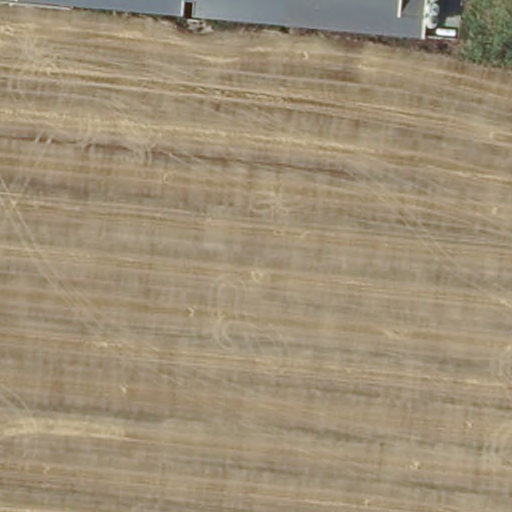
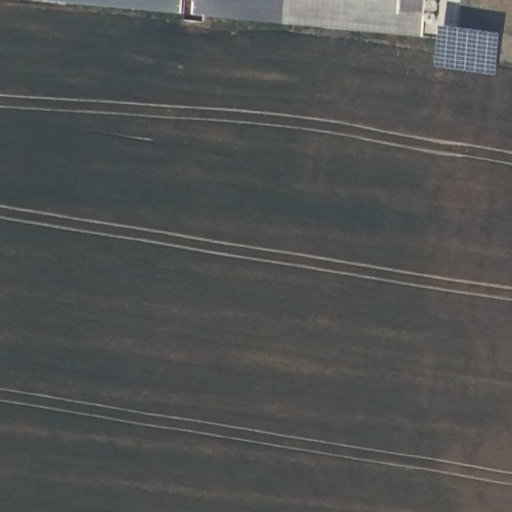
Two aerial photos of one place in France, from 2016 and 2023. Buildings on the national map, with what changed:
unchanged [(185,0),(184,14),(23,0),(185,0)]
unchanged [(195,0),(285,0),(282,24),(194,15),(195,0)]
unchanged [(427,0),(422,37),(282,24),(285,0),(427,0)]
new [(498,76),(437,67),(439,28),(503,35),(498,76)]

